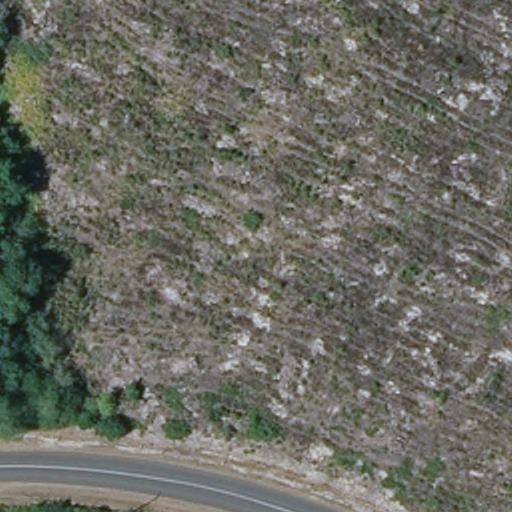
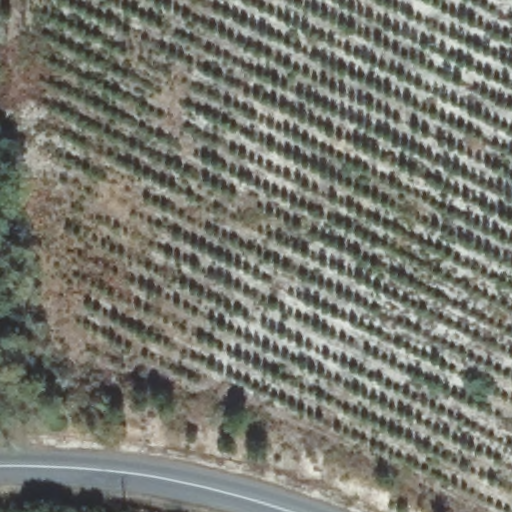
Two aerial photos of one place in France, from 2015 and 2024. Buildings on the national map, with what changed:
[]

